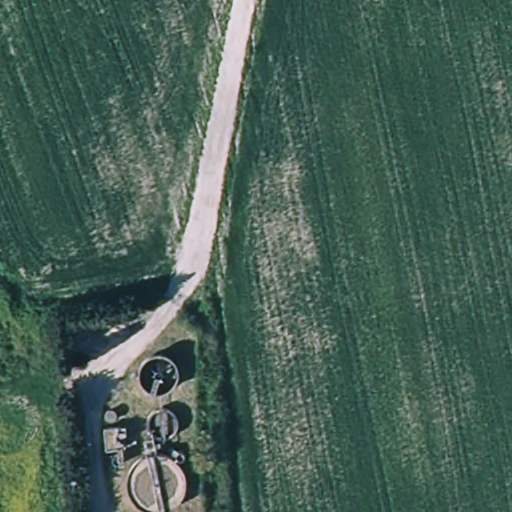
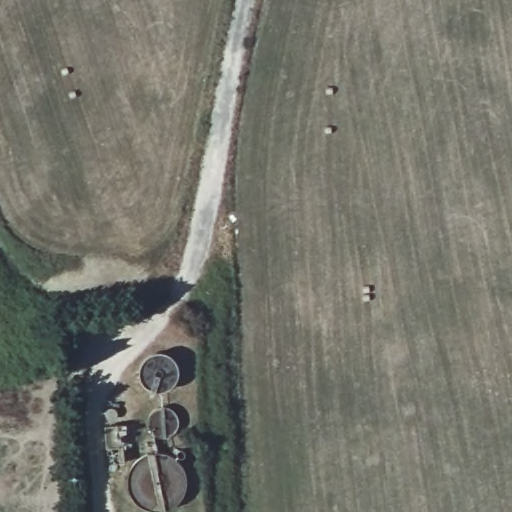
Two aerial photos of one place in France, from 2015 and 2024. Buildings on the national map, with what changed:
unchanged [(127,427),(129,448),(108,451),(106,427),(127,427)]

